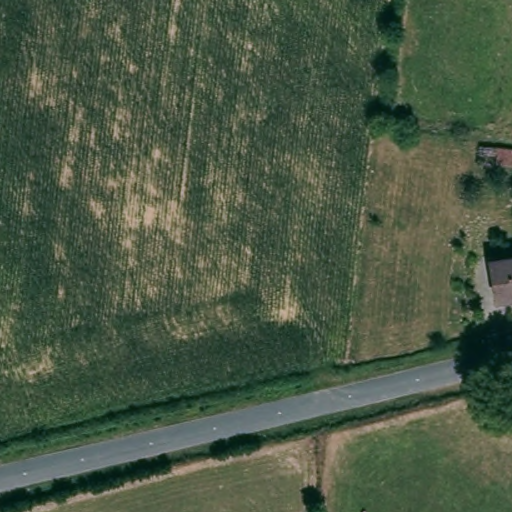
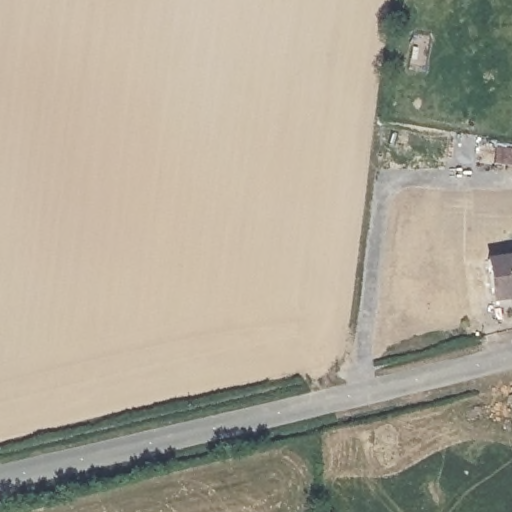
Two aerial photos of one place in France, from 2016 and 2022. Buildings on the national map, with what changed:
unchanged [(488,139),(512,141),(512,162),(487,158),(488,139)]
unchanged [(490,250),(512,248),(512,292),(493,295),(490,250)]

